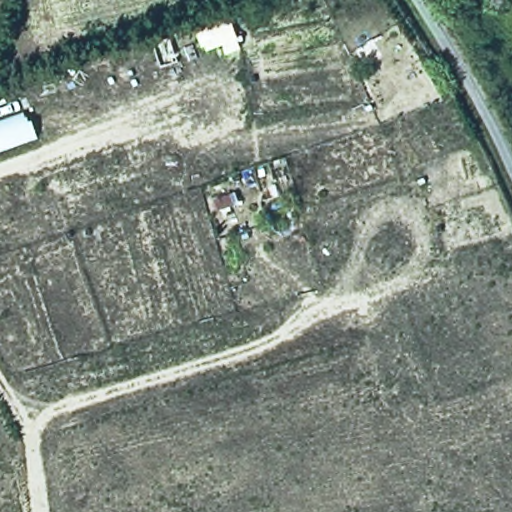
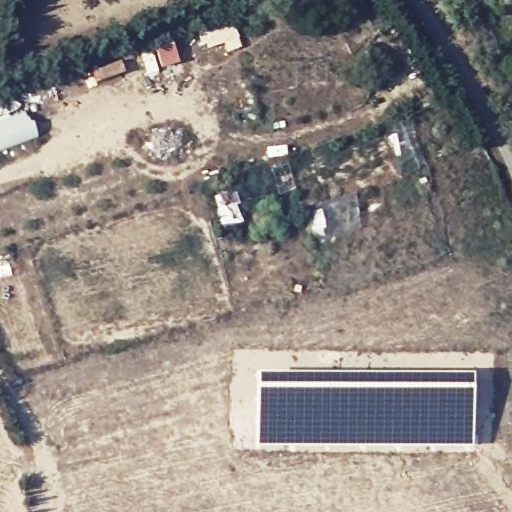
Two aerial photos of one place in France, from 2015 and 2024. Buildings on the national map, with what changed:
new [(28,122),(31,122),(36,137),(0,149),(0,119),(24,112),(28,122)]
new [(474,373),(473,448),(255,447),(254,372),(474,373)]

